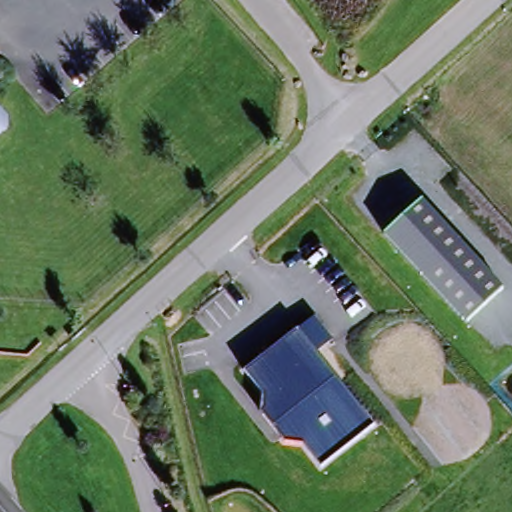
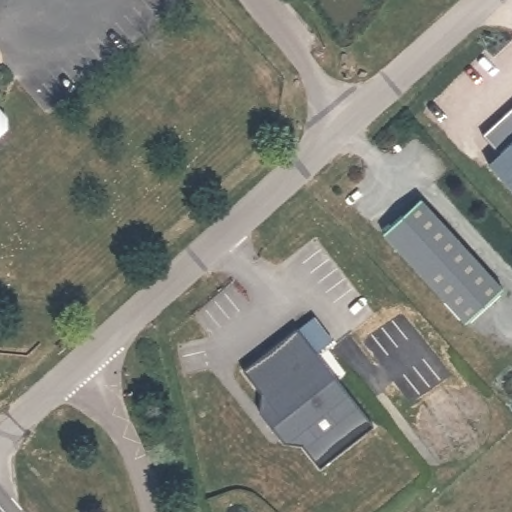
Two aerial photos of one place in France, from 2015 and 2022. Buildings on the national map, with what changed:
new [(503,112),(512,103),(512,190),(486,162),(497,151),(494,148),(496,147),(484,135),(506,115),(503,112)]
unchanged [(498,287),(462,322),(384,234),(422,199),(498,287)]
unchanged [(334,343),(320,355),(376,424),(321,466),(303,447),(283,445),(259,413),(261,396),(245,373),(314,317),(334,343)]

